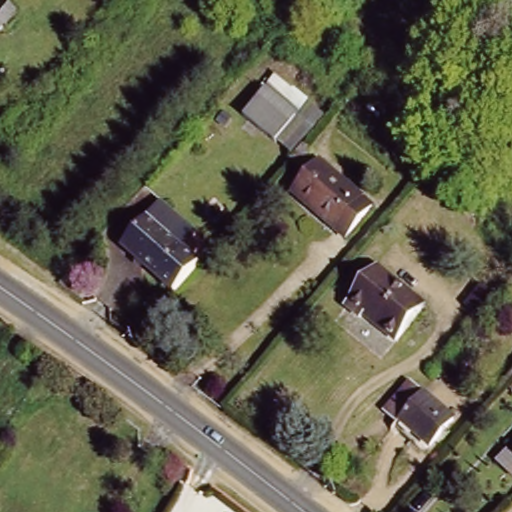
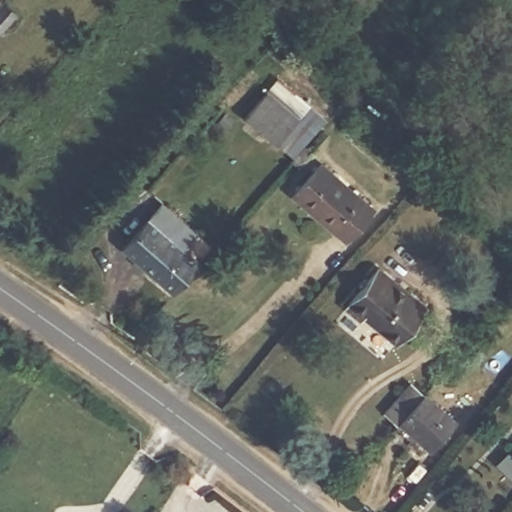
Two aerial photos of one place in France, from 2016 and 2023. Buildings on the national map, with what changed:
unchanged [(0,0),(2,0),(4,1),(16,12),(0,30),(0,0)]
unchanged [(324,115),(293,148),(271,130),(291,109),(263,84),(275,71),(324,115)]
unchanged [(291,109),(271,130),(270,131),(242,106),(263,84),(291,109)]
unchanged [(377,205),(350,236),(299,191),(327,160),(377,205)]
unchanged [(129,255),(136,247),(122,234),(147,206),(159,192),(181,211),(169,225),(195,249),(170,277),(154,263),(147,271),(129,255)]
unchanged [(429,297),(400,331),(368,304),(365,308),(352,298),(385,259),(429,297)]
unchanged [(437,444),(404,416),(403,417),(390,406),(415,375),(429,387),(462,415),(437,444)]

